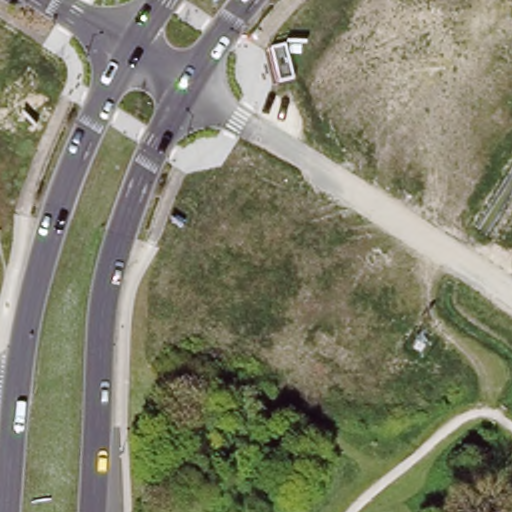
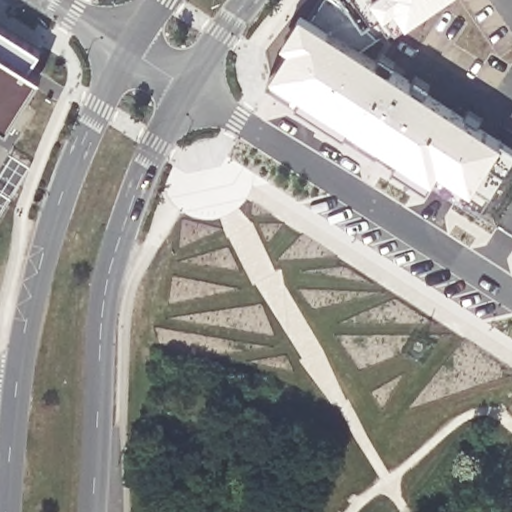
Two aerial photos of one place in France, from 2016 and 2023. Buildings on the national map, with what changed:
new [(476,215),(426,184),(268,79),(307,15),(319,0),(433,0),(387,30),(356,46),(500,141),(512,149),(512,160),(476,215)]
new [(40,74),(8,124),(0,119),(0,24),(39,49),(28,66),(40,74)]

